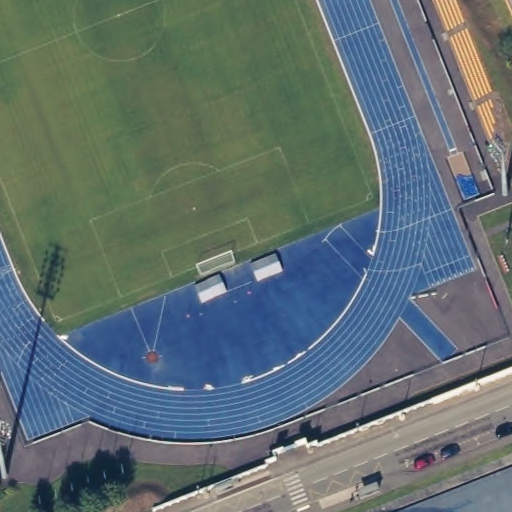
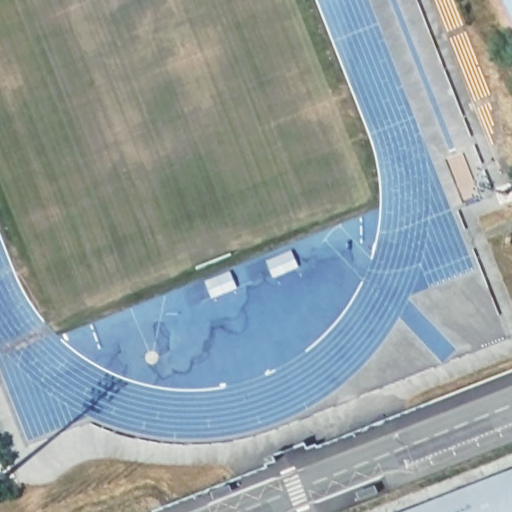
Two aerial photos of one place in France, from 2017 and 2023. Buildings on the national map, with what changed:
unchanged [(508,0),(512,0),(512,9),(508,0)]
unchanged [(384,512),(512,466),(512,512),(384,512)]

